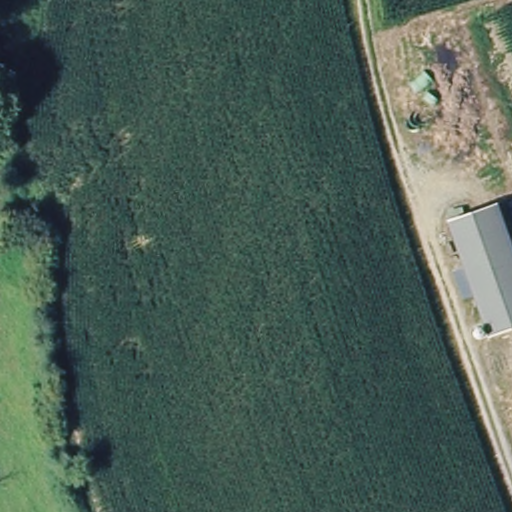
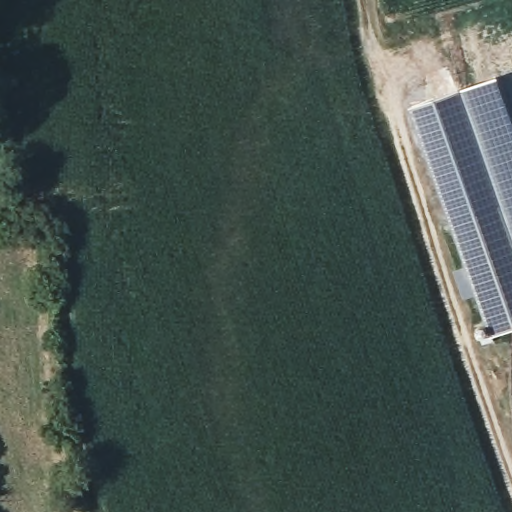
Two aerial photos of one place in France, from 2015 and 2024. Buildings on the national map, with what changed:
new [(460,90),(497,75),(512,117),(512,258),(497,211),(460,90)]
new [(449,225),(411,106),(460,90),(497,211),(449,225)]
unchanged [(512,258),(512,332),(486,340),(449,225),(497,211),(512,258)]

